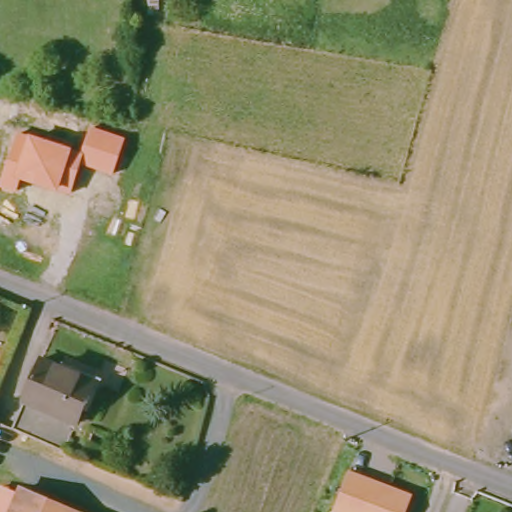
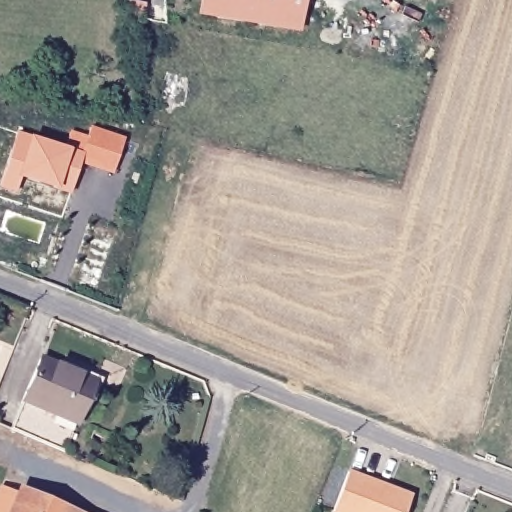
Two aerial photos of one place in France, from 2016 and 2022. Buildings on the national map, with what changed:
new [(198,0),(303,0),(298,29),(196,11),(198,0)]
unchanged [(0,187),(19,134),(29,135),(73,149),(82,151),(90,127),(126,137),(114,175),(82,165),(72,195),(59,191),(17,179),(16,193),(0,188),(0,187)]
unchanged [(52,349),(105,371),(78,436),(28,415),(52,349)]
unchanged [(414,498),(409,512),(336,512),(350,475),(414,498)]
unchanged [(18,512),(25,495),(81,512),(18,512)]

